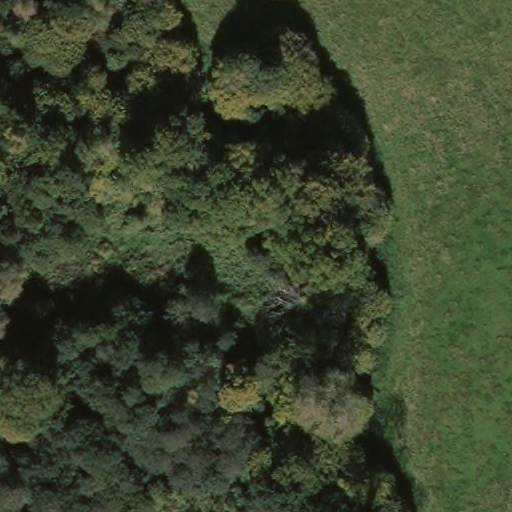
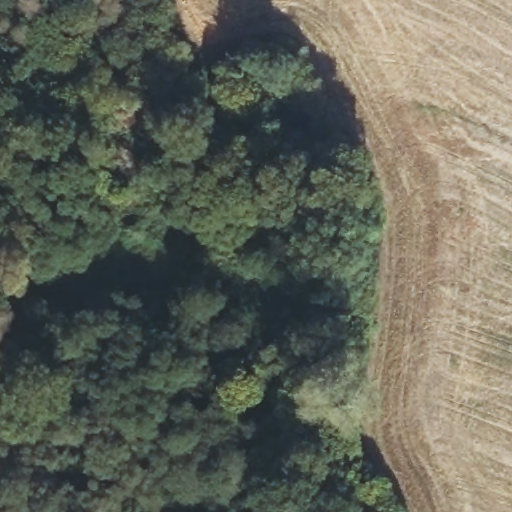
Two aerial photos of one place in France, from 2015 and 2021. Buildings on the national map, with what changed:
[]

